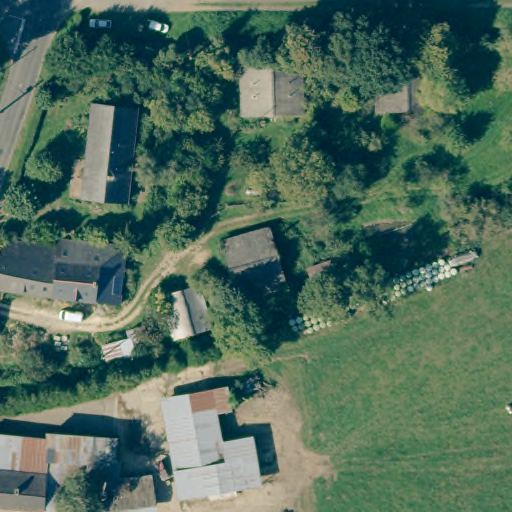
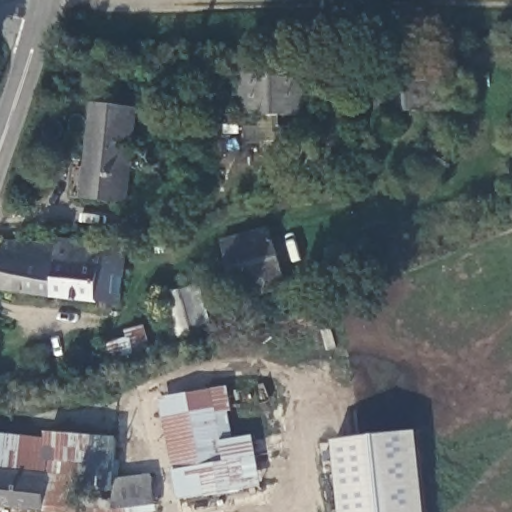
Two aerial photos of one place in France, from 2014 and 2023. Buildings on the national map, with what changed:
unchanged [(437,64),(437,113),(378,115),(377,65),(437,64)]
unchanged [(300,69),(300,118),(241,118),(240,69),(300,69)]
unchanged [(125,202),(83,197),(94,109),(135,114),(125,202)]
unchanged [(267,229),(284,285),(237,300),(220,243),(267,229)]
unchanged [(120,305),(0,291),(0,257),(2,255),(2,244),(52,248),(55,248),(56,242),(127,249),(120,305)]
unchanged [(195,288),(209,332),(174,343),(160,299),(195,288)]
unchanged [(111,365),(108,365),(103,347),(135,338),(132,330),(140,328),(147,357),(141,359),(111,365)]
unchanged [(82,350),(86,356),(84,365),(76,369),(69,365),(68,357),(75,350),(82,350)]
unchanged [(22,374),(26,388),(0,393),(0,377),(22,374)]
unchanged [(259,482),(184,495),(166,395),(207,388),(217,441),(251,435),(259,482)]
new [(419,430),(427,512),(342,512),(335,441),(419,430)]
unchanged [(41,508),(44,473),(0,468),(0,434),(45,438),(45,432),(115,439),(112,476),(118,476),(150,475),(154,505),(121,508),(112,510),(112,502),(111,512),(66,512),(41,508)]
unchanged [(44,473),(41,508),(9,505),(9,502),(0,501),(0,468),(44,473)]

